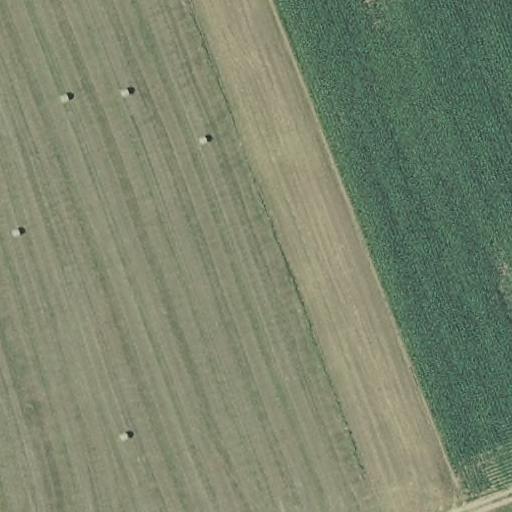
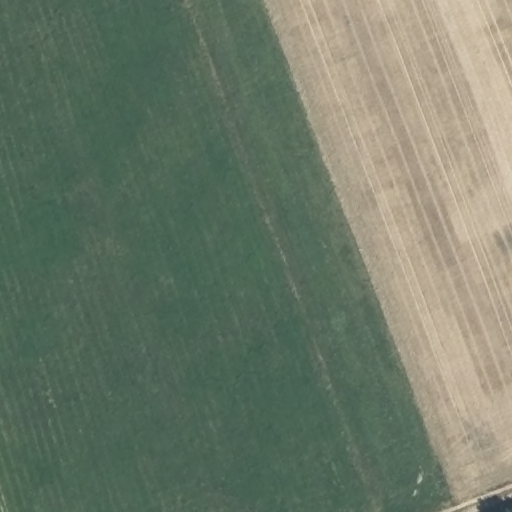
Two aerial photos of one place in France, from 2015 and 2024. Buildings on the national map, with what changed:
[]

